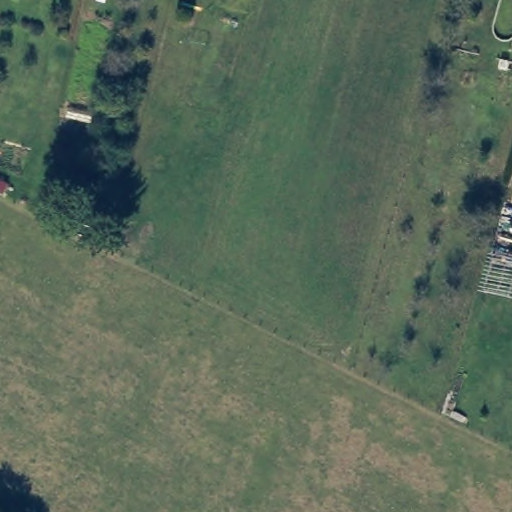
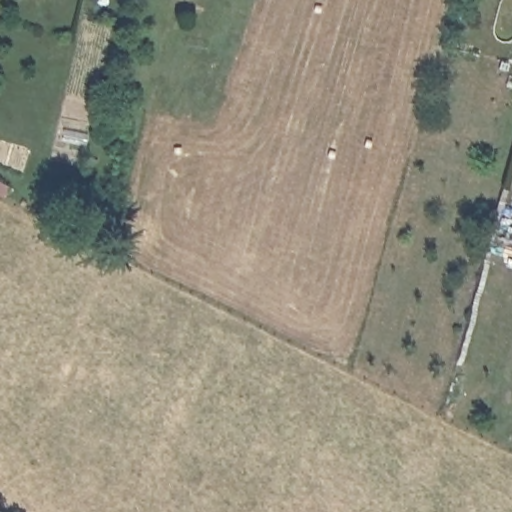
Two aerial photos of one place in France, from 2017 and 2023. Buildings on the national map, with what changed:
[]

